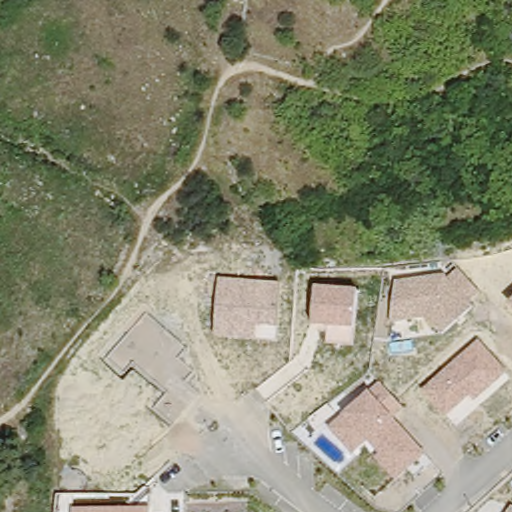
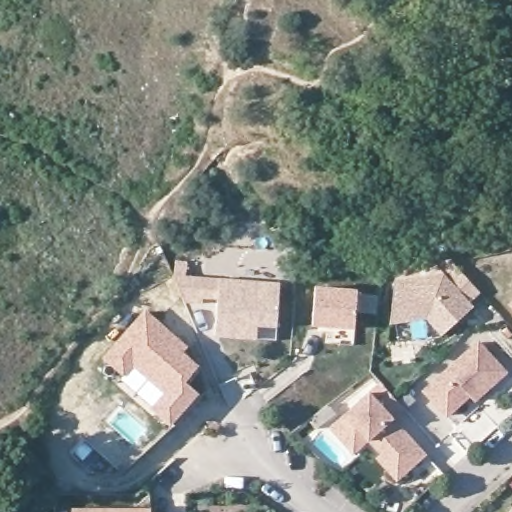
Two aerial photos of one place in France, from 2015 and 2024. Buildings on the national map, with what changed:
unchanged [(395,281),(444,274),(448,280),(459,271),(479,293),(468,304),(472,308),(442,336),(427,320),(390,324),(395,281)]
new [(217,299),(201,299),(200,304),(185,301),(177,276),(218,280),(217,299)]
unchanged [(218,280),(280,284),(277,328),(257,327),(256,340),(214,337),(218,280)]
unchanged [(314,286),(358,290),(355,328),(312,325),(314,286)]
unchanged [(512,307),(509,304),(512,301),(512,307)]
new [(146,313),(187,349),(179,359),(195,372),(186,382),(202,396),(174,427),(153,409),(169,390),(136,361),(124,374),(106,358),(146,313)]
unchanged [(424,390),(478,340),(508,374),(474,404),(469,398),(447,417),(424,390)]
unchanged [(329,427),(345,414),(369,393),(380,384),(405,410),(394,420),(425,455),(396,483),(374,460),(380,455),(369,441),(353,455),(329,427)]
unchanged [(152,510),(152,512),(73,512),(73,509),(152,510)]
unchanged [(512,512),(511,512),(512,511),(512,512)]

